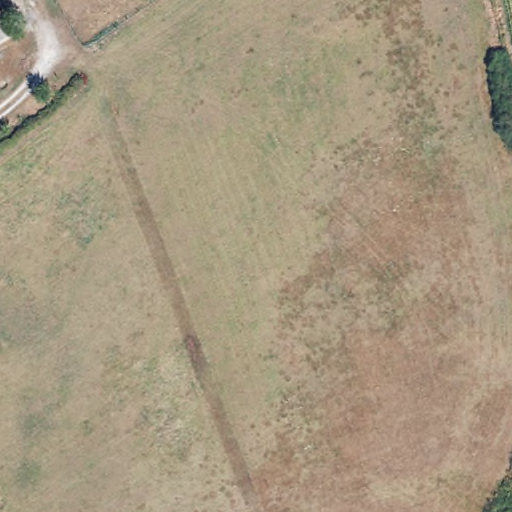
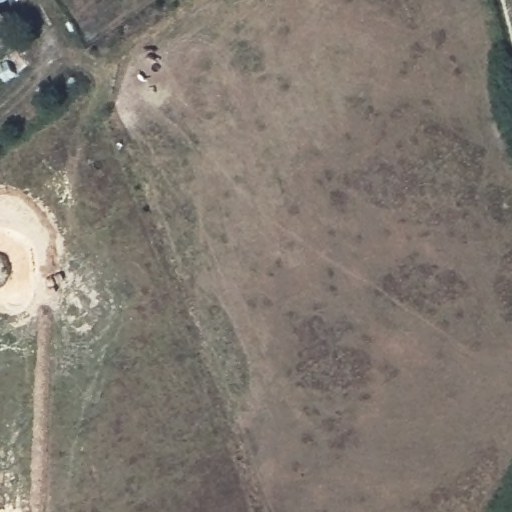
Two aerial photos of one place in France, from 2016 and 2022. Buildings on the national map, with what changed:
unchanged [(16,36),(0,47),(0,10),(16,36)]

